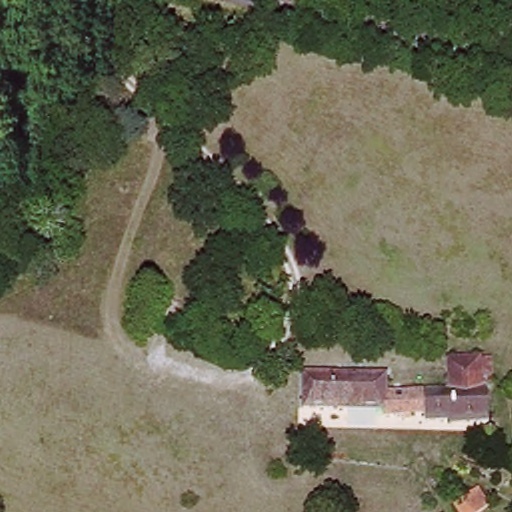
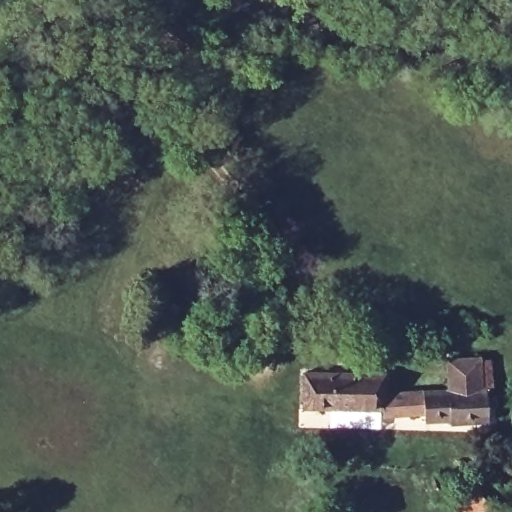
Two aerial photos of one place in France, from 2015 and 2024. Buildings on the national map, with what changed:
unchanged [(156,40),(167,15),(200,31),(190,56),(156,40)]
unchanged [(166,311),(159,338),(135,331),(143,304),(166,311)]
unchanged [(452,369),(460,369),(487,370),(487,376),(486,400),(494,401),(494,432),(432,429),(432,422),(392,423),(391,410),(307,411),(305,373),(381,372),(381,389),(435,392),(452,397),(452,369)]
unchanged [(511,496),(512,495),(512,497),(511,496)]
unchanged [(483,512),(455,512),(474,499),(483,512)]

